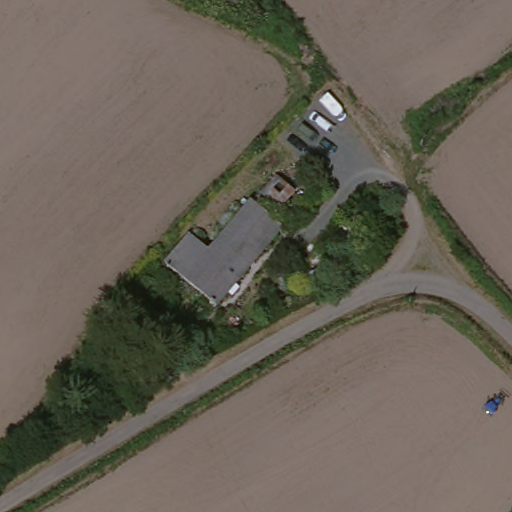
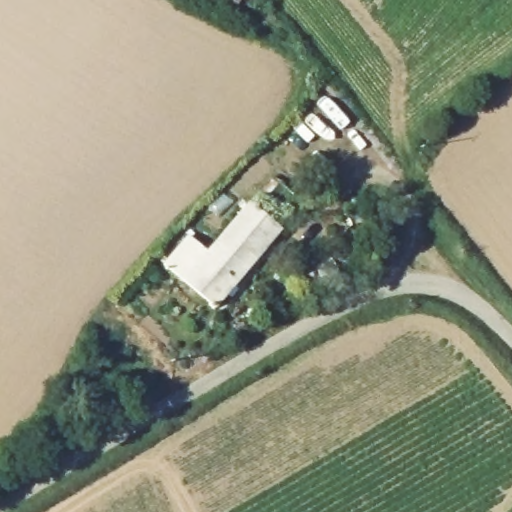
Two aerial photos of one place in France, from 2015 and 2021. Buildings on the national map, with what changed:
unchanged [(203,0),(241,0),(234,14),(203,0)]
unchanged [(212,312),(190,288),(163,269),(190,236),(209,249),(246,203),(253,207),(273,185),(293,199),(272,224),(278,230),(212,312)]
unchanged [(346,240),(365,203),(384,214),(368,253),(346,240)]
unchanged [(323,263),(331,278),(312,290),(306,274),(323,263)]

